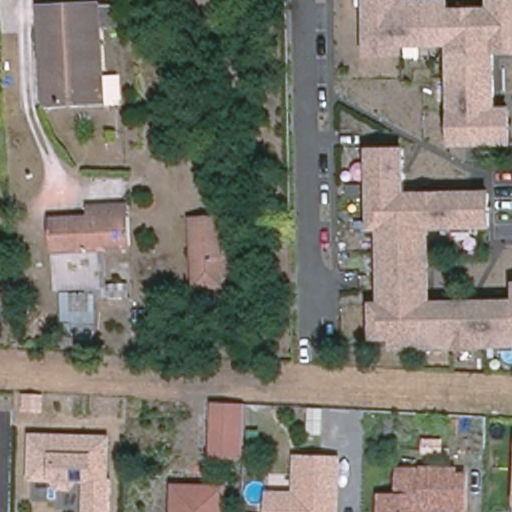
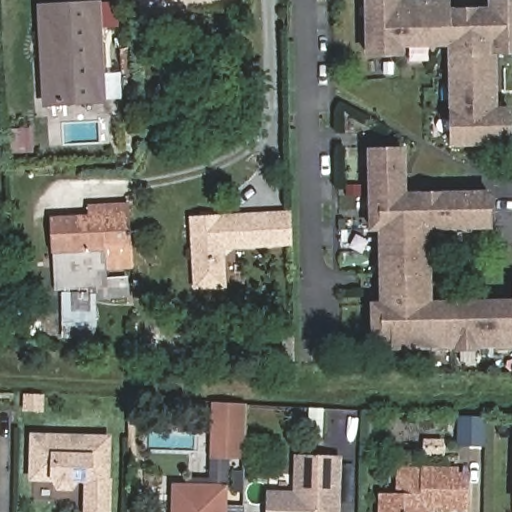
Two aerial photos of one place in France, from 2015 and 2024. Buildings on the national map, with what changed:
unchanged [(487,0),(512,0),(512,54),(497,55),(497,106),(512,106),(512,145),(451,146),(449,46),(405,47),(406,56),(366,57),(364,0),(450,0),(451,6),(487,5),(487,0)]
unchanged [(113,4),(114,21),(114,27),(96,28),(98,102),(41,104),(39,67),(55,67),(52,7),(113,4)]
unchanged [(494,227),(431,229),(432,299),(512,298),(512,348),(389,352),(390,340),(372,341),(370,301),(381,301),(379,230),(370,230),(369,148),(406,147),(408,190),(492,188),(494,227)]
unchanged [(105,253),(105,276),(59,276),(59,253),(52,252),(52,215),(90,214),(88,203),(128,203),(130,249),(105,253)]
new [(221,218),(221,214),(291,209),(292,245),(222,249),(221,218)]
unchanged [(224,286),(196,287),(192,220),(221,218),(224,286)]
unchanged [(59,253),(59,276),(105,276),(103,291),(92,293),(94,338),(61,340),(62,291),(53,291),(52,252),(59,253)]
unchanged [(209,457),(211,402),(246,403),(244,458),(209,457)]
unchanged [(83,512),(84,482),(79,482),(72,490),(56,489),(51,481),(29,480),(31,430),(112,433),(111,512),(83,512)]
unchanged [(267,512),(267,489),(295,490),(295,454),(342,455),(342,512),(267,512)]
unchanged [(378,512),(378,492),(396,492),(398,464),(469,464),(469,512),(431,512),(378,512)]
unchanged [(227,484),(226,512),(171,512),(171,484),(227,484)]

